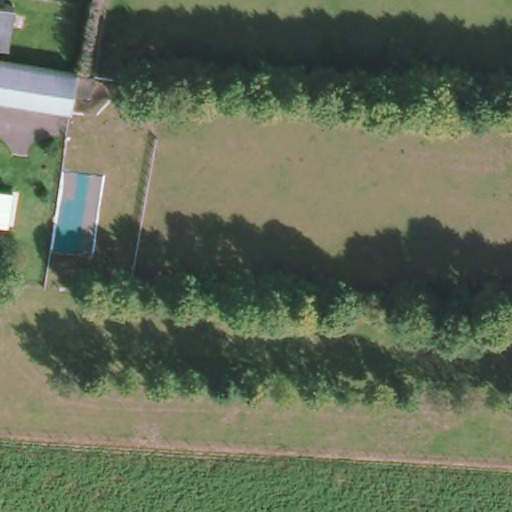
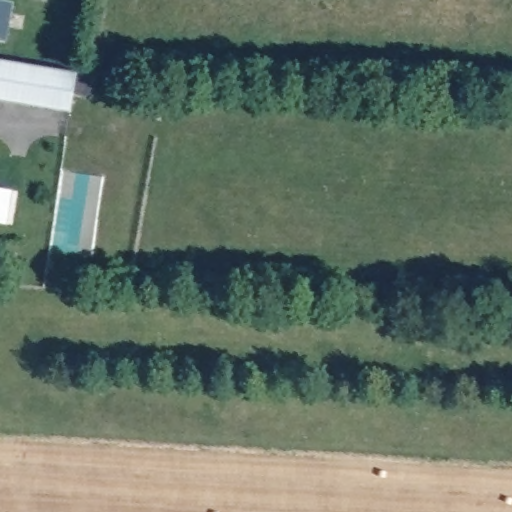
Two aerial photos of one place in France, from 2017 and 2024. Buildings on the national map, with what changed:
unchanged [(0,2),(12,4),(6,40),(0,39),(0,2)]
unchanged [(0,60),(3,61),(92,75),(87,94),(73,92),(70,111),(0,100),(0,60)]
unchanged [(0,218),(0,185),(6,186),(1,219),(0,218)]

